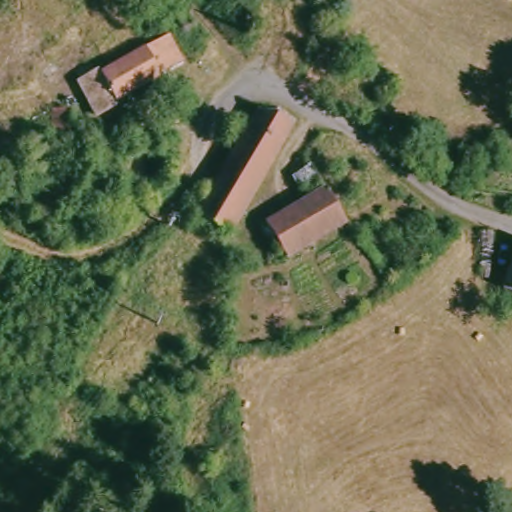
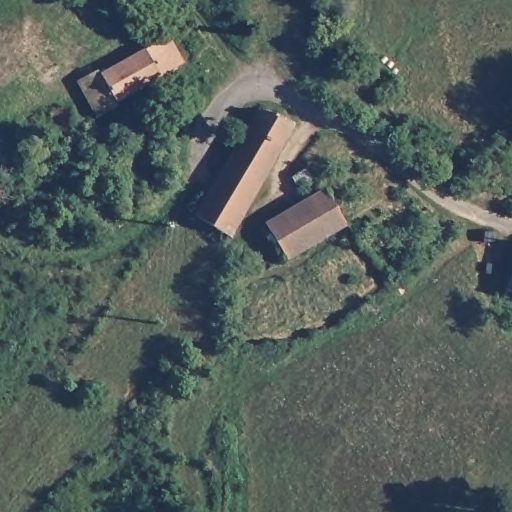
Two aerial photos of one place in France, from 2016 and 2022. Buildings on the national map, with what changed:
unchanged [(187,64),(117,103),(114,97),(107,100),(100,99),(97,93),(100,87),(106,82),(105,77),(111,73),(173,38),(187,64)]
unchanged [(261,194),(230,175),(263,117),(294,134),(261,194)]
unchanged [(308,202),(294,182),(312,168),(329,191),(352,227),(290,267),(267,225),(308,202)]
unchanged [(261,194),(235,241),(202,221),(226,180),(230,175),(261,194)]
unchanged [(507,300),(512,285),(512,301),(507,300)]

